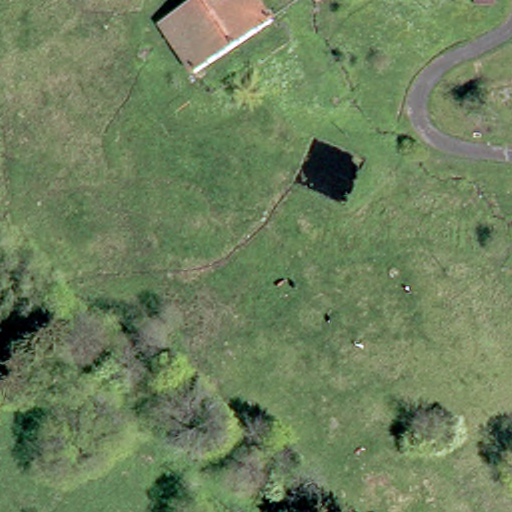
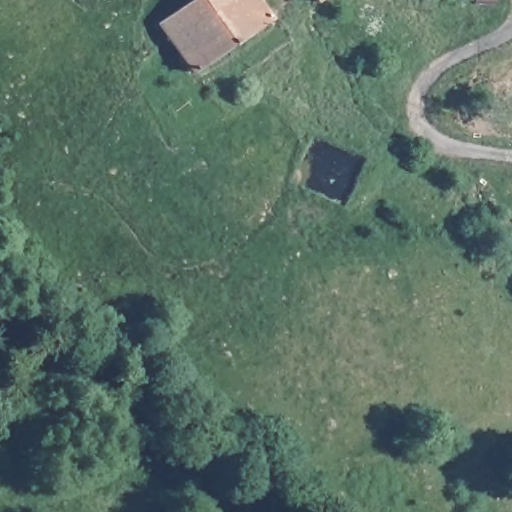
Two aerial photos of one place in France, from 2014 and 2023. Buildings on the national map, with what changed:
unchanged [(163,25),(202,0),(253,0),(271,25),(196,76),(163,25)]
unchanged [(311,0),(334,0),(319,10),(311,0)]

